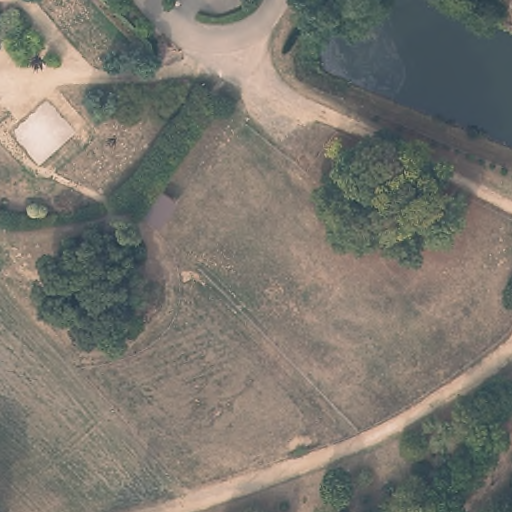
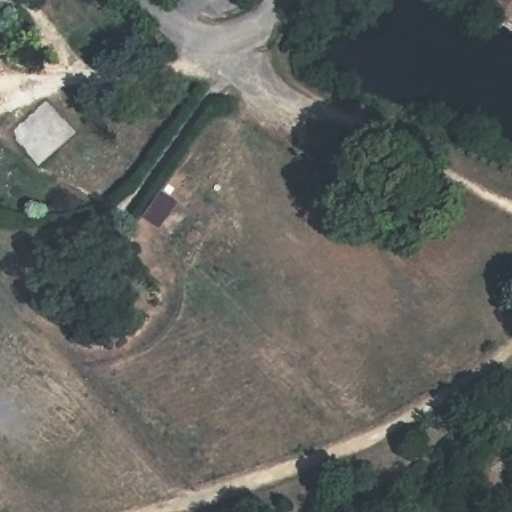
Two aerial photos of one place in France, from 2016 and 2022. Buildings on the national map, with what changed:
unchanged [(6,36),(0,42),(0,30),(6,36)]

